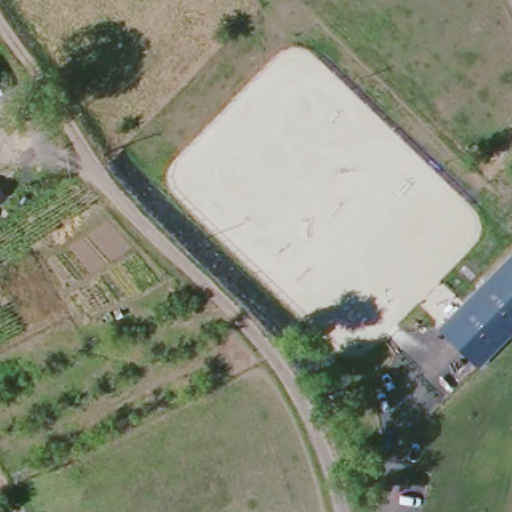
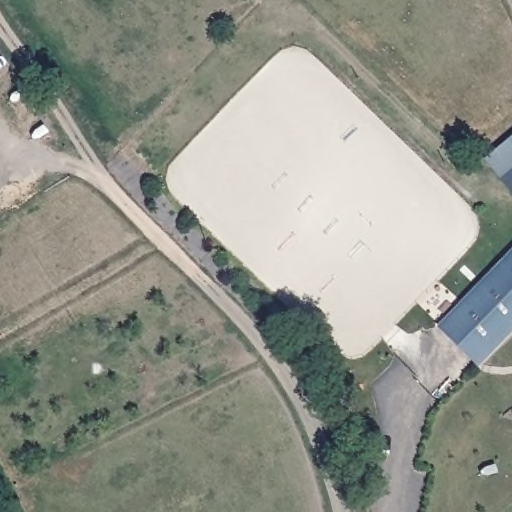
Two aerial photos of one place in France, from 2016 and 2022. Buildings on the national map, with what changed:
new [(485,160),(512,136),(512,193),(485,160)]
unchanged [(479,366),(440,325),(512,250),(512,332),(479,366)]

